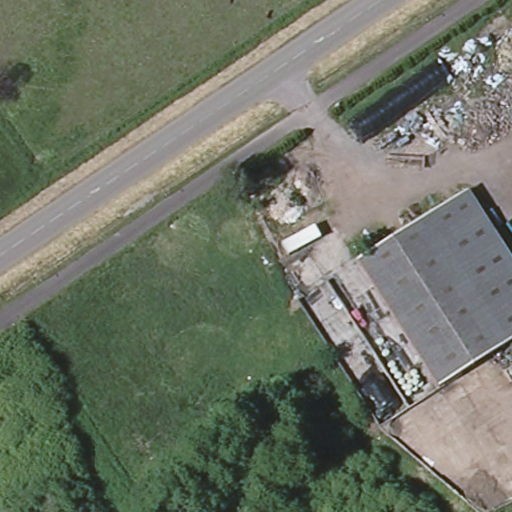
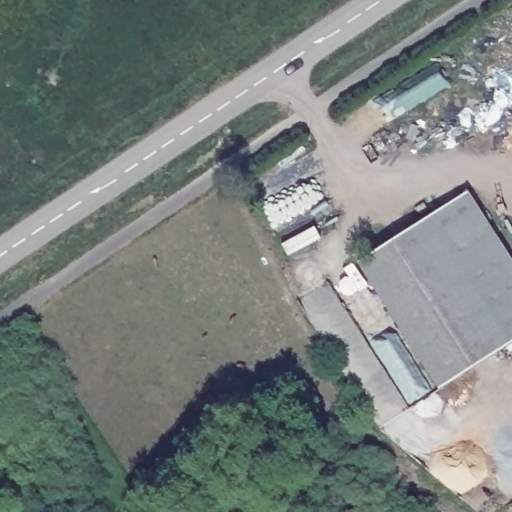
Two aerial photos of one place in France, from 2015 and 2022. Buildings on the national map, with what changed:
unchanged [(464,189),(512,262),(512,343),(434,395),(410,356),(350,256),(464,189)]

